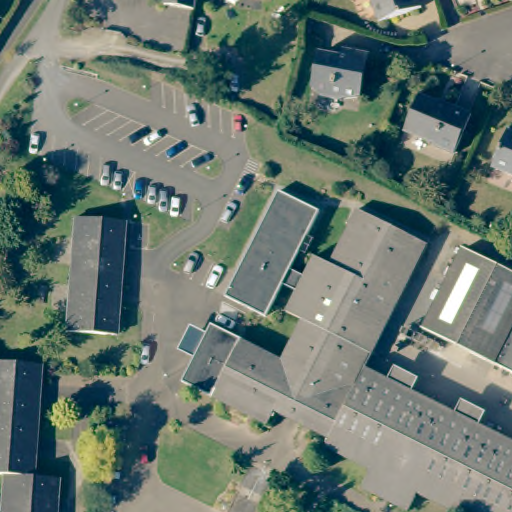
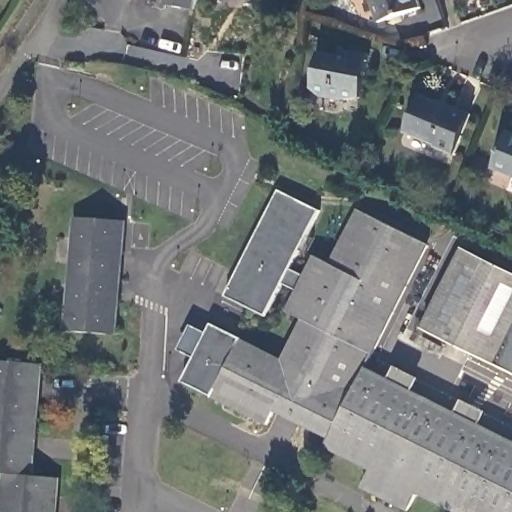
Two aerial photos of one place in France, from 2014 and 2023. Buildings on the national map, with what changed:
unchanged [(193,11),(164,6),(165,0),(195,0),(193,11)]
unchanged [(421,9),(380,23),(371,0),(418,0),(421,9)]
unchanged [(361,99),(344,101),(321,97),(313,89),(320,53),(349,58),(350,51),(370,55),(361,99)]
unchanged [(455,156),(437,149),(437,147),(410,135),(416,116),(413,110),(420,95),(452,107),(453,104),(473,114),(455,156)]
unchanged [(492,168),(508,131),(512,133),(512,176),(492,168)]
unchanged [(454,512),(418,494),(409,511),(362,489),(371,471),(327,448),(330,440),(276,413),(269,425),(182,381),(195,357),(178,349),(191,324),(207,332),(212,323),(282,359),(302,318),(287,310),(297,290),(283,283),(266,316),(225,295),(279,189),(320,210),(290,269),(304,276),(314,256),(330,264),(358,209),(429,245),(368,367),(390,378),(397,365),(420,376),(413,390),(458,412),(464,399),(486,410),(480,423),(512,439),(512,512),(454,512)]
unchanged [(76,216),(125,221),(116,335),(67,331),(76,216)]
unchanged [(512,270),(512,374),(424,330),(466,247),(512,270)]
unchanged [(33,477),(57,479),(55,512),(2,512),(4,474),(0,474),(0,362),(41,365),(33,477)]

